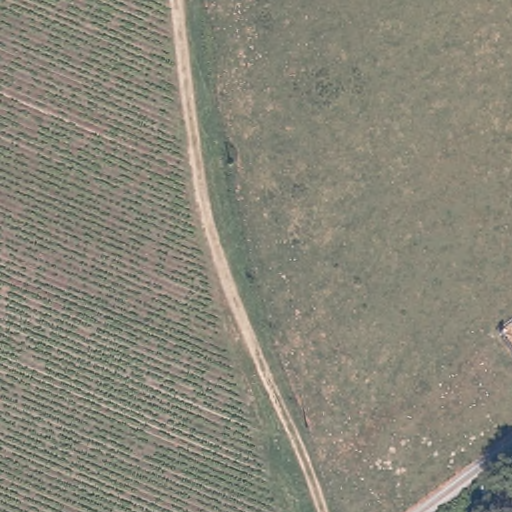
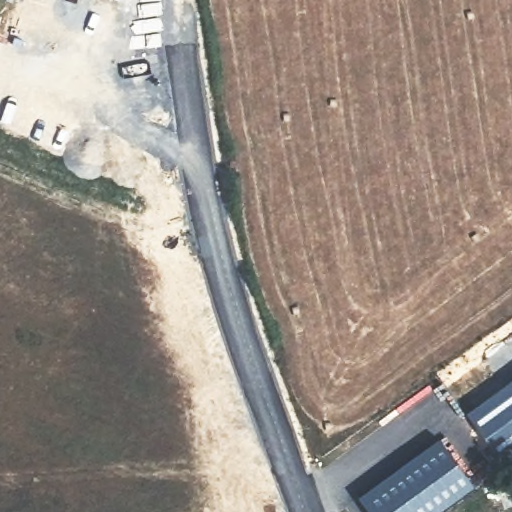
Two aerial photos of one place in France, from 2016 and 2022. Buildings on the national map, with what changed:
new [(439,439),(474,487),(440,512),(368,512),(357,498),(439,439)]

